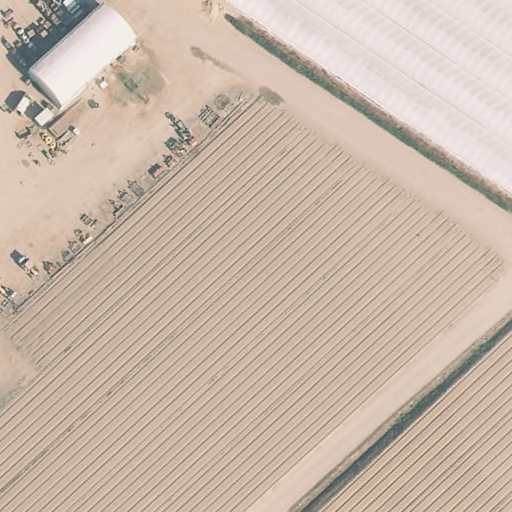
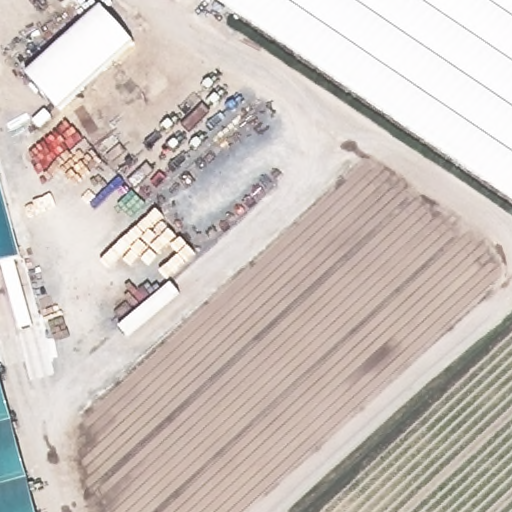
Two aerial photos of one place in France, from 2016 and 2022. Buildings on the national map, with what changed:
unchanged [(512,0),(512,193),(228,0),(512,0)]
unchanged [(105,10),(138,46),(65,115),(31,79),(105,10)]
new [(37,512),(0,512),(0,374),(37,512)]

